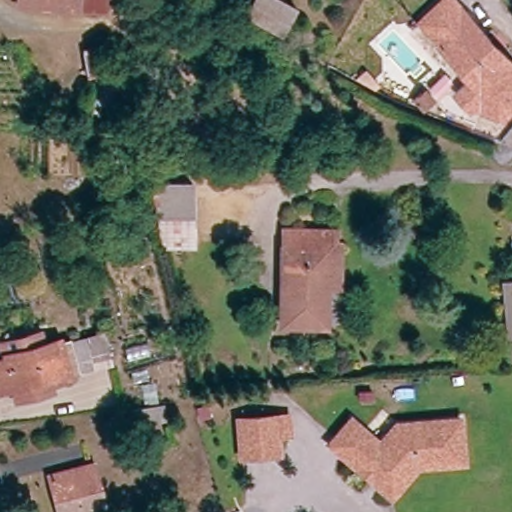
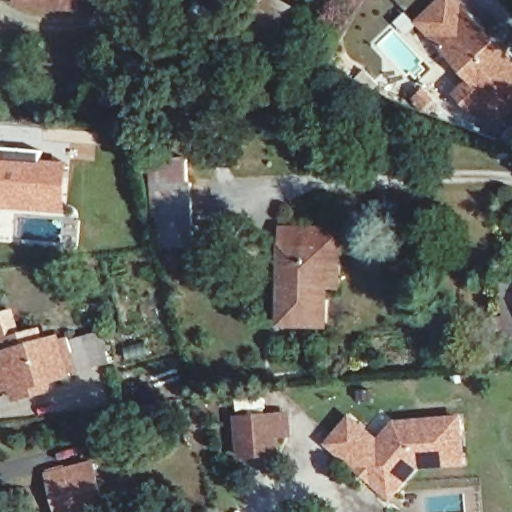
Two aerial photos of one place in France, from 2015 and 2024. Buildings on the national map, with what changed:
unchanged [(79,16),(18,12),(19,0),(80,0),(79,16)]
unchanged [(105,17),(79,16),(80,0),(106,0),(105,17)]
unchanged [(224,5),(216,0),(227,0),(224,5)]
unchanged [(297,11),(283,37),(245,16),(254,0),(279,0),(297,11)]
unchanged [(411,27),(403,36),(393,25),(402,17),(411,27)]
unchanged [(512,79),(474,116),(460,101),(475,86),(435,45),(458,22),(469,34),(475,29),(512,67),(512,79)]
unchanged [(89,79),(83,52),(96,49),(107,47),(110,61),(100,64),(104,76),(89,79)]
unchanged [(512,134),(512,148),(503,145),(512,134)]
new [(45,150),(44,160),(70,162),(65,215),(2,210),(0,227),(0,146),(45,150)]
unchanged [(157,221),(152,217),(152,184),(193,182),(197,247),(157,244),(157,221)]
unchanged [(330,256),(325,256),(323,332),(276,332),(277,254),(285,254),(285,236),(331,237),(330,256)]
new [(14,306),(25,341),(0,350),(0,311),(14,306)]
unchanged [(53,397),(35,402),(33,393),(15,398),(14,395),(0,398),(0,397),(0,366),(7,365),(6,361),(24,356),(20,343),(41,337),(45,351),(61,347),(62,351),(104,338),(111,367),(70,380),(71,383),(50,388),(53,397)]
unchanged [(129,362),(126,351),(148,345),(152,357),(129,362)]
unchanged [(165,405),(167,422),(132,426),(130,410),(165,405)]
unchanged [(288,418),(288,436),(276,437),(277,457),(240,458),(239,421),(276,419),(288,418)]
unchanged [(375,481),(355,463),(344,455),(332,444),(353,420),(381,443),(398,424),(462,419),(465,462),(422,466),(420,466),(398,491),(393,497),(375,481)]
unchanged [(106,508),(93,512),(59,512),(50,477),(70,472),(72,479),(97,472),(106,508)]

